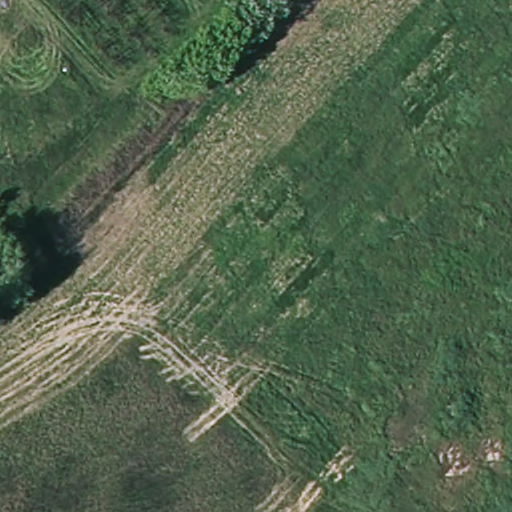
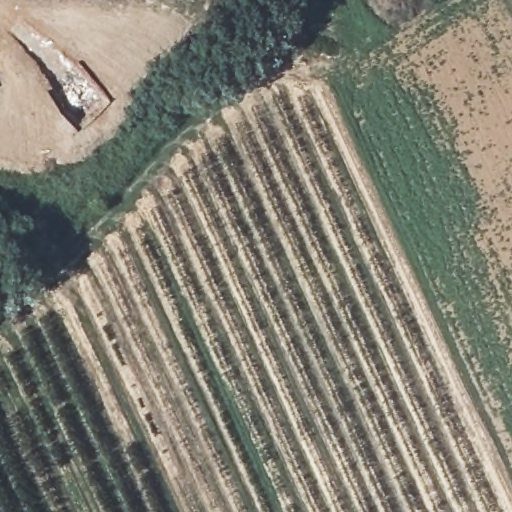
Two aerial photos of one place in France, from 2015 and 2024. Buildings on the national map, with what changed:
[]

